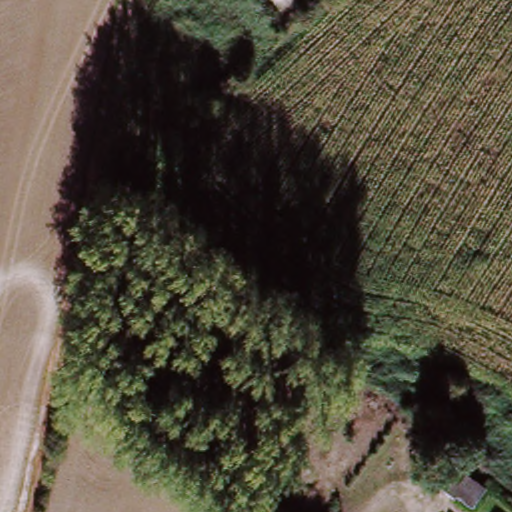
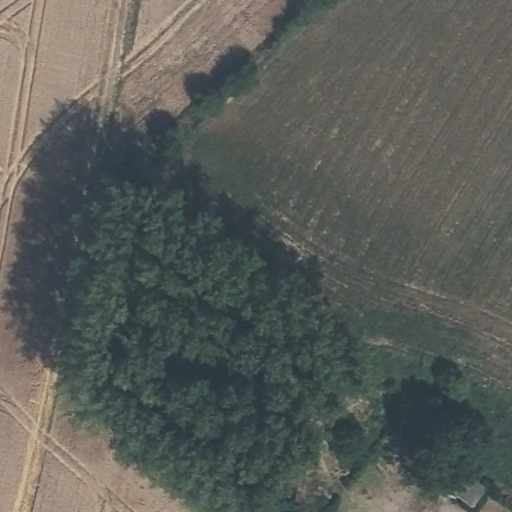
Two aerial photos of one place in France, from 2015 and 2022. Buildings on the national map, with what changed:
unchanged [(460,496),(457,499),(446,491),(448,487),(439,480),(454,462),(490,493),(477,509),(460,496)]

